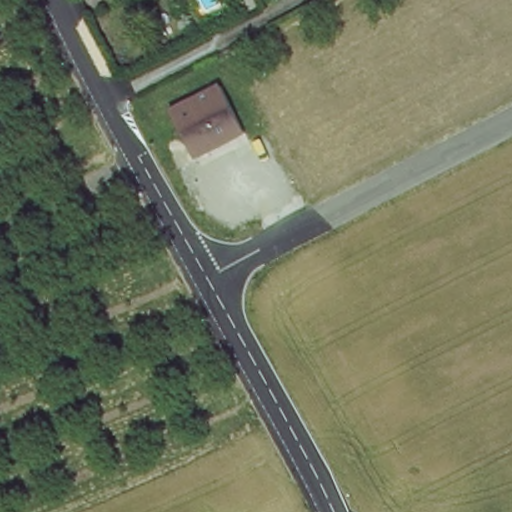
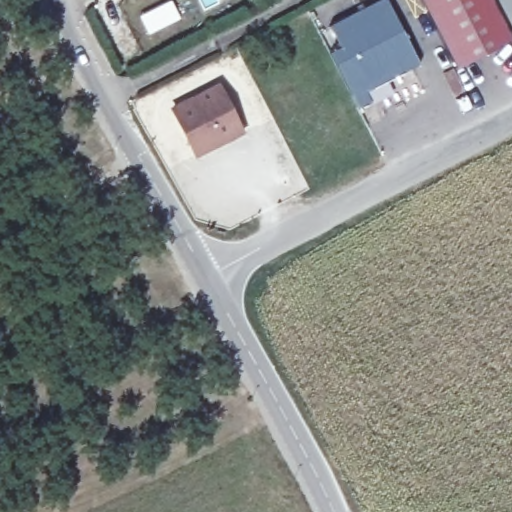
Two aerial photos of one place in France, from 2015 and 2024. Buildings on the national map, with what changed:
new [(365,92),(370,102),(358,108),(331,54),(341,48),(331,27),(385,0),(418,64),(365,92)]
new [(467,64),(433,0),(512,0),(512,40),(467,64)]
unchanged [(236,86),(259,132),(212,156),(189,110),(236,86)]

